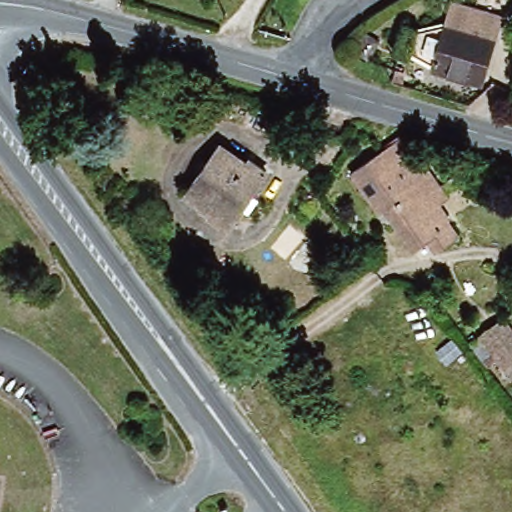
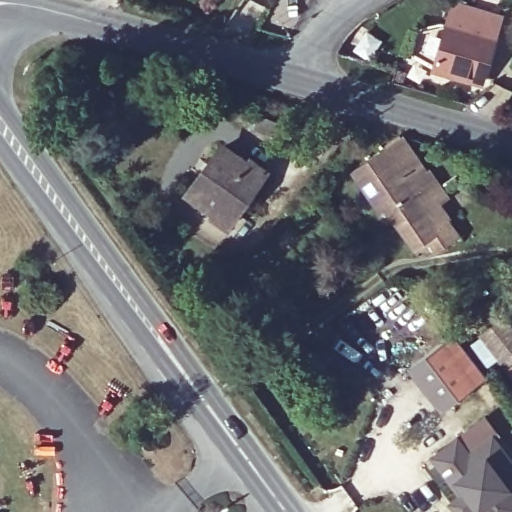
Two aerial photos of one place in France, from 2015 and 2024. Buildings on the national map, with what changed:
unchanged [(437,67),(438,62),(424,58),(428,43),(435,21),(440,22),(449,25),(453,8),(470,12),(500,22),(495,42),(483,81),(437,67)]
unchanged [(427,167),(410,178),(443,227),(418,243),(392,205),(385,208),(357,166),(403,136),(427,167)]
unchanged [(221,147),(250,166),(254,160),(269,170),(231,228),(214,219),(217,213),(189,194),(221,147)]
unchanged [(487,368),(470,344),(505,317),(512,327),(512,381),(497,361),(487,368)]
new [(446,342),(478,387),(446,411),(413,366),(446,342)]
new [(451,502),(462,495),(445,472),(433,455),(458,437),(470,452),(493,435),(512,461),(512,512),(474,512),(473,510),(471,512),(458,512),(451,502)]

